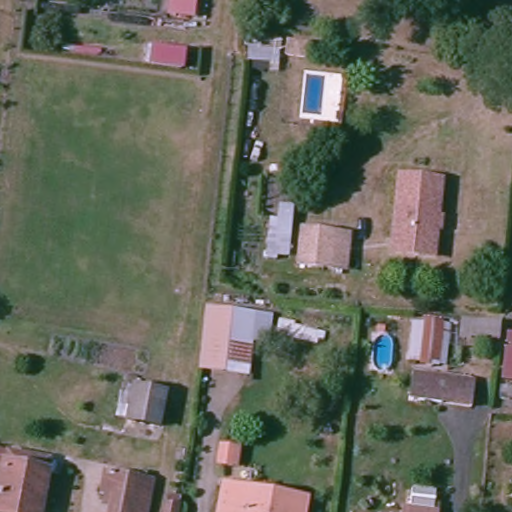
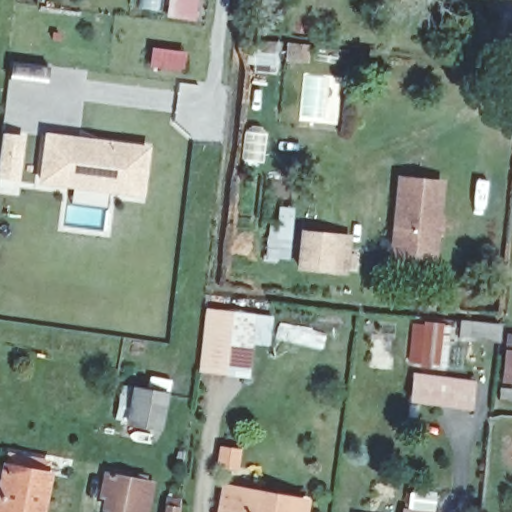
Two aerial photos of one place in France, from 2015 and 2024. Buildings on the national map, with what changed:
unchanged [(155,56),(185,59),(184,76),(154,73),(155,56)]
new [(46,135),(146,148),(140,194),(40,181),(46,135)]
unchanged [(431,257),(389,253),(399,175),(440,181),(431,257)]
unchanged [(273,220),(274,204),(292,206),(287,262),(262,260),(263,220),(273,220)]
unchanged [(301,263),(304,232),(336,236),(350,237),(348,256),(347,270),(301,263)]
unchanged [(200,368),(206,312),(229,315),(221,372),(200,368)]
unchanged [(240,374),(221,372),(229,315),(248,317),(240,374)]
unchanged [(450,321),(445,369),(410,366),(410,363),(403,362),(408,317),(450,321)]
new [(512,356),(512,388),(497,387),(500,354),(512,356)]
unchanged [(411,379),(469,386),(465,412),(407,406),(411,379)]
unchanged [(143,426),(111,420),(119,385),(150,391),(143,426)]
unchanged [(39,467),(32,512),(2,512),(0,512),(0,467),(1,460),(39,467)]
unchanged [(145,512),(108,512),(111,492),(99,489),(101,468),(134,474),(134,467),(144,470),(141,480),(150,482),(145,512)]
unchanged [(437,486),(435,509),(400,506),(400,485),(437,486)]
unchanged [(220,488),(301,503),(300,512),(217,512),(220,488)]

